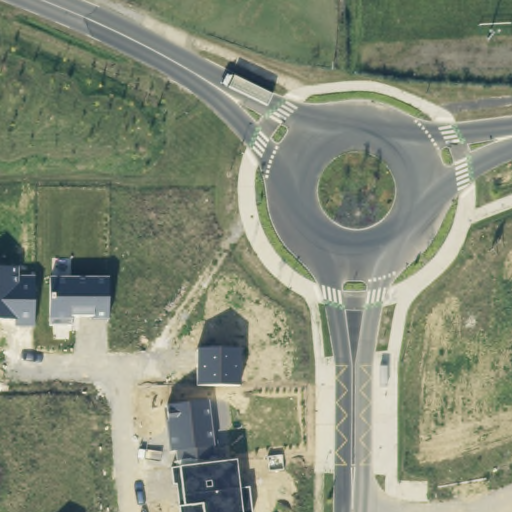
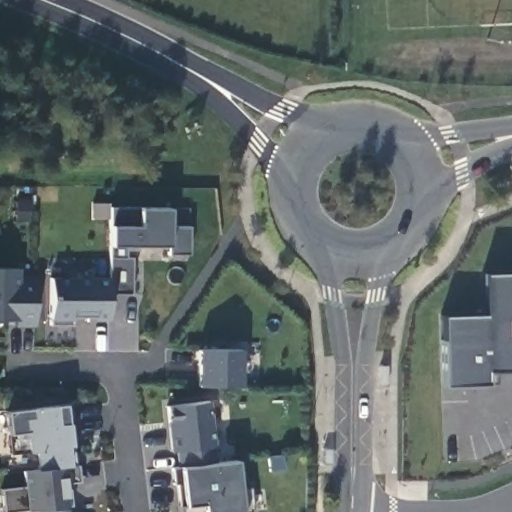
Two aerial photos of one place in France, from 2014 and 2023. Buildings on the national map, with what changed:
unchanged [(109,277),(110,247),(110,245),(111,225),(110,224),(111,208),(139,208),(169,209),(169,226),(189,226),(188,255),(168,255),(168,248),(168,246),(138,247),(139,251),(126,251),(126,258),(132,258),(131,295),(109,295),(109,277)]
unchanged [(16,269),(16,278),(35,278),(35,325),(15,325),(16,318),(0,319),(0,268),(16,269)]
new [(483,272),(512,272),(512,371),(487,372),(488,385),(443,386),(441,315),(484,313),(483,272)]
unchanged [(52,277),(109,277),(110,319),(93,320),(94,315),(72,316),(72,324),(50,325),(52,277)]
unchanged [(198,349),(239,349),(239,384),(198,384),(198,349)]
unchanged [(176,449),(170,450),(166,422),(170,421),(167,406),(208,401),(214,446),(212,446),(214,461),(178,465),(176,449)]
new [(24,472),(36,470),(34,453),(27,454),(27,452),(10,454),(5,412),(30,410),(30,408),(56,405),(71,405),(72,422),(69,423),(72,446),(75,466),(78,466),(79,482),(65,482),(67,497),(68,506),(28,511),(16,512),(4,512),(2,489),(25,487),(24,472)]
unchanged [(218,462),(236,460),(239,488),(249,487),(252,512),(179,512),(178,507),(185,506),(181,483),(173,484),(172,467),(178,465),(214,461),(218,462)]

